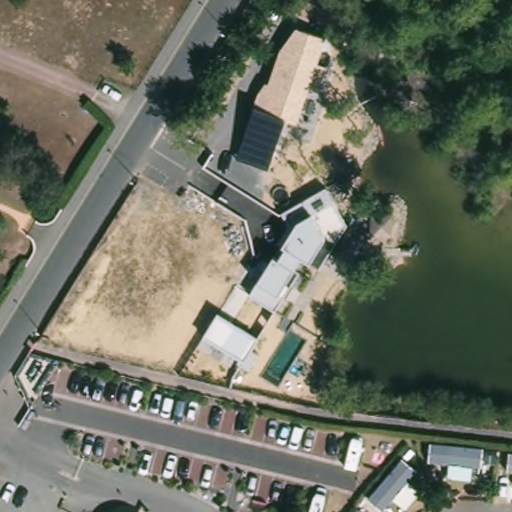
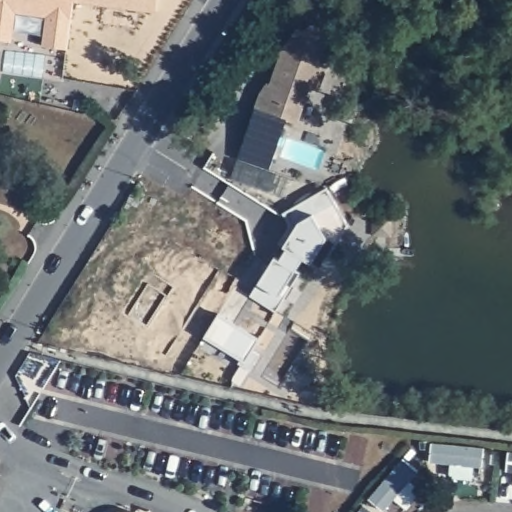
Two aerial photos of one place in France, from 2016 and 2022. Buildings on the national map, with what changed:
new [(73,0),(67,49),(42,46),(46,17),(15,12),(11,42),(0,40),(0,0),(73,0)]
unchanged [(237,157),(256,94),(262,86),(269,82),(278,51),(296,27),(327,37),(296,126),(286,123),(268,170),(237,157)]
unchanged [(308,264),(301,260),(293,272),(296,275),(274,312),(249,297),(257,283),(274,255),(279,258),(285,248),(281,245),(277,242),(285,229),(285,220),(281,213),(325,187),(346,226),(320,268),(308,264)]
unchanged [(258,352),(247,371),(235,363),(240,358),(203,337),(219,313),(259,339),(252,349),(258,352)]

